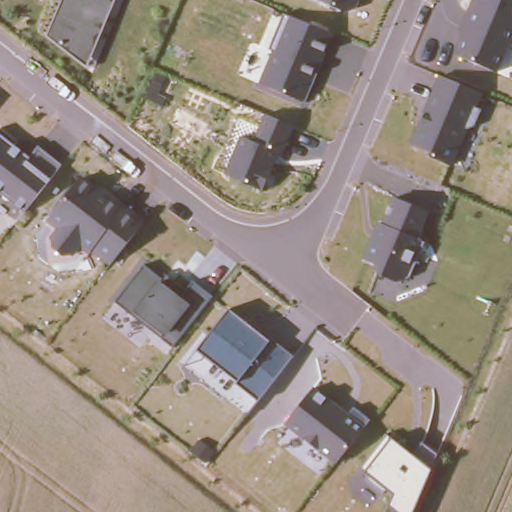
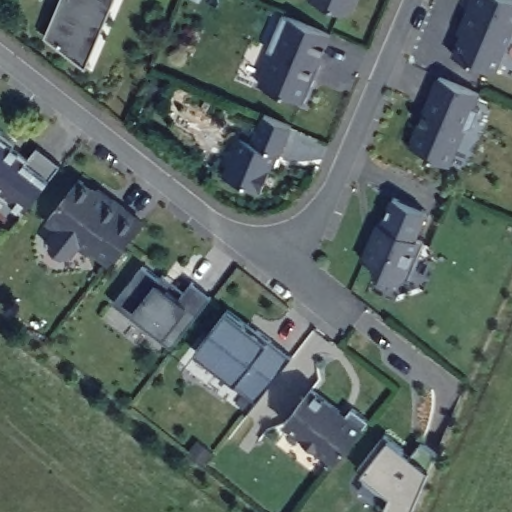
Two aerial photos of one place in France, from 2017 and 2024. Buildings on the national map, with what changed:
unchanged [(61,0),(114,0),(85,67),(45,36),(61,0)]
unchanged [(347,14),(318,0),(358,0),(355,9),(347,14)]
unchanged [(458,32),(474,0),(512,0),(512,34),(497,74),(453,57),(460,36),(458,32)]
unchanged [(260,83),(273,51),(270,48),(285,14),(332,34),(305,103),(260,83)]
unchanged [(410,144),(441,75),(481,92),(476,107),(480,110),(472,127),(467,129),(452,165),(410,144)]
unchanged [(225,175),(242,136),(253,143),(266,115),(292,126),(282,155),(277,154),(275,167),(268,169),(261,191),(225,175)]
unchanged [(0,129),(33,155),(42,148),(60,164),(24,210),(0,192),(0,130),(0,129)]
unchanged [(77,177),(104,197),(108,192),(143,221),(109,263),(78,241),(64,254),(49,243),(57,226),(47,217),(77,177)]
unchanged [(427,208),(418,230),(427,233),(413,273),(396,286),(376,279),(380,263),(367,259),(380,225),(388,228),(398,198),(427,208)]
unchanged [(115,303),(143,266),(162,280),(165,276),(173,283),(170,289),(180,298),(192,281),(212,297),(172,347),(115,303)]
unchanged [(235,381),(197,351),(228,310),(292,356),(257,399),(235,381)]
unchanged [(286,426),(314,387),(350,414),(353,409),(369,421),(335,465),(286,426)]
unchanged [(387,506),(391,495),(364,473),(360,470),(387,436),(392,439),(412,457),(422,445),(435,456),(428,471),(411,512),(385,512),(387,506)]

